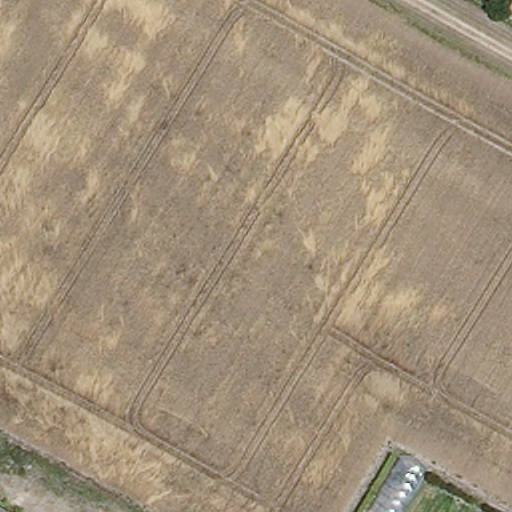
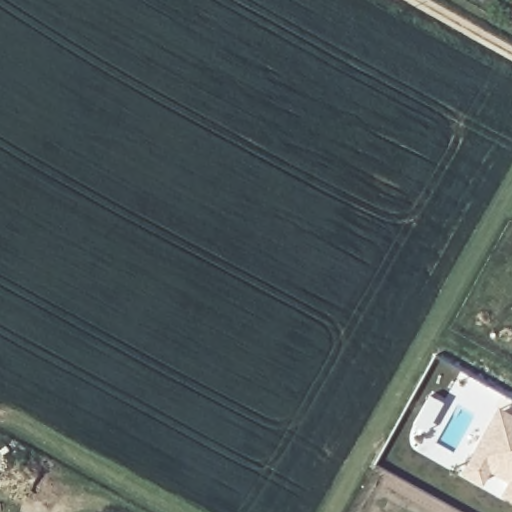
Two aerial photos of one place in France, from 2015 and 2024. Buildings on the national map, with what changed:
unchanged [(493,19),(500,4),(512,10),(512,29),(493,19)]
new [(499,497),(507,483),(485,471),(477,485),(459,475),(479,439),(494,411),(511,420),(512,421),(512,504),(499,497)]

